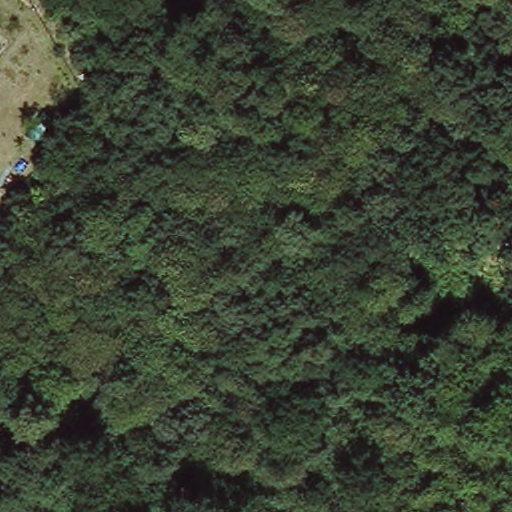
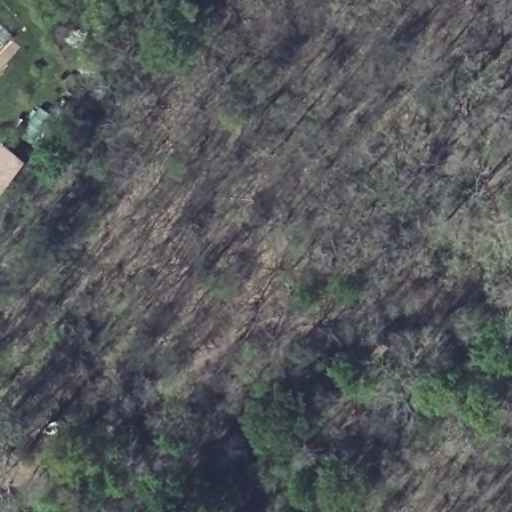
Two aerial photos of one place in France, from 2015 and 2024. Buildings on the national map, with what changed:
new [(1,142),(13,150),(24,157),(2,189),(0,187),(0,144),(1,142)]

